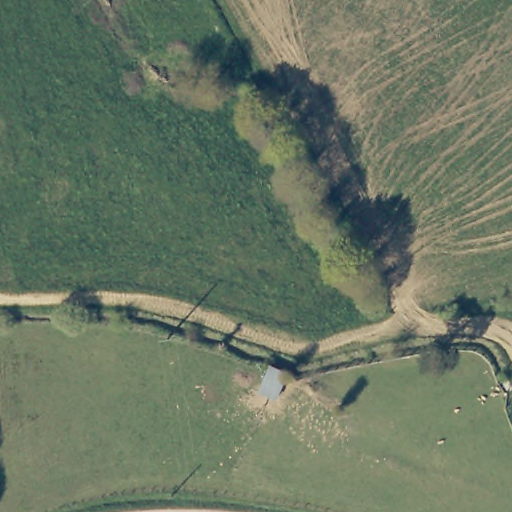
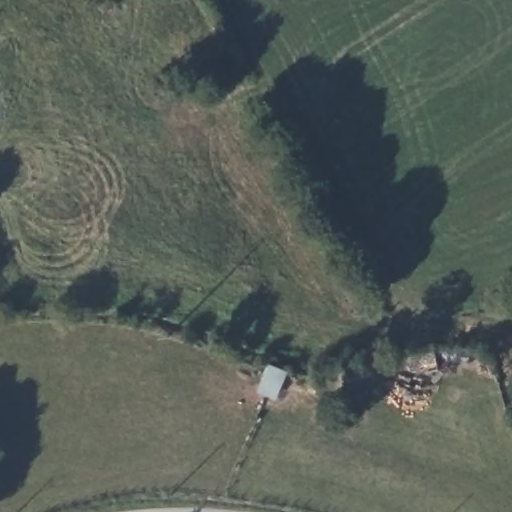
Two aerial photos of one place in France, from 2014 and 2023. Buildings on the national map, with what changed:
[]

